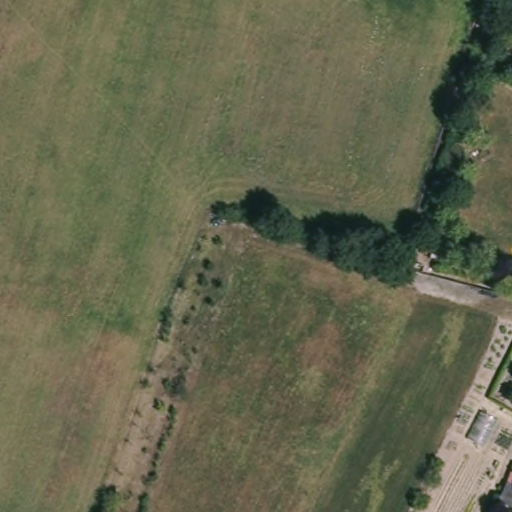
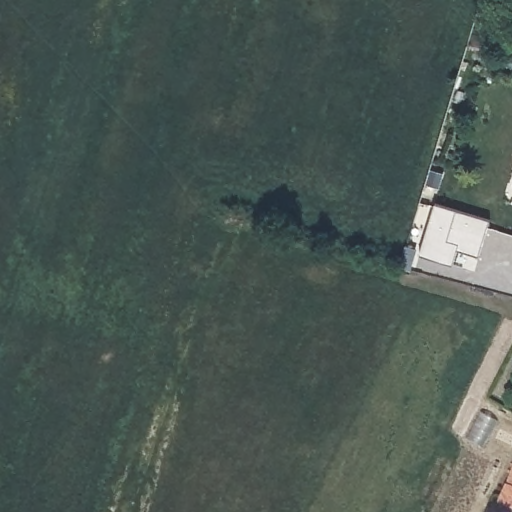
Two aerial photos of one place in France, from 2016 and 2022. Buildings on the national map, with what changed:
new [(488,218),(478,255),(455,250),(451,263),(417,255),(433,202),(488,218)]
unchanged [(499,508),(512,469),(512,511),(499,508)]

